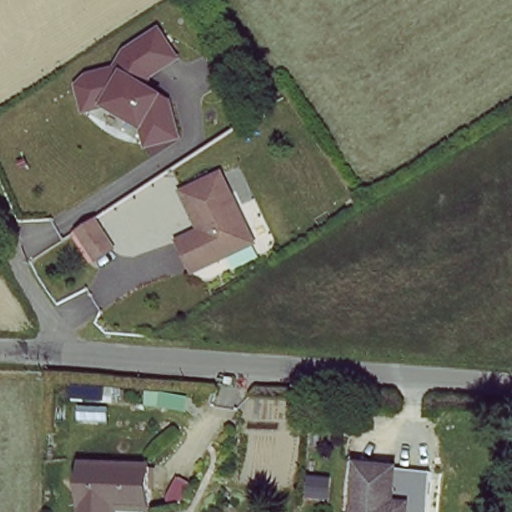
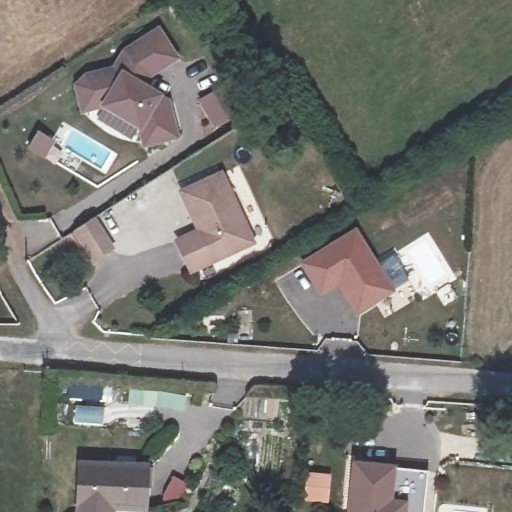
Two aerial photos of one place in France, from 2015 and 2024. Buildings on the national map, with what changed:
unchanged [(83,74),(111,67),(122,48),(160,25),(179,61),(145,84),(170,99),(179,140),(141,148),(137,130),(97,110),(80,115),(71,87),(83,74)]
unchanged [(175,243),(198,232),(179,192),(217,173),(249,240),(211,258),(188,270),(175,243)]
unchanged [(78,214),(99,245),(82,255),(62,225),(78,214)]
new [(322,288),(305,260),(356,228),(392,287),(358,308),(344,284),(340,277),(322,288)]
unchanged [(82,460),(146,465),(146,502),(111,501),(110,512),(79,512),(82,460)]
unchanged [(391,502),(402,504),(401,512),(348,512),(353,463),(394,467),(391,502)]
new [(303,471),(332,474),(329,504),(301,501),(303,471)]

